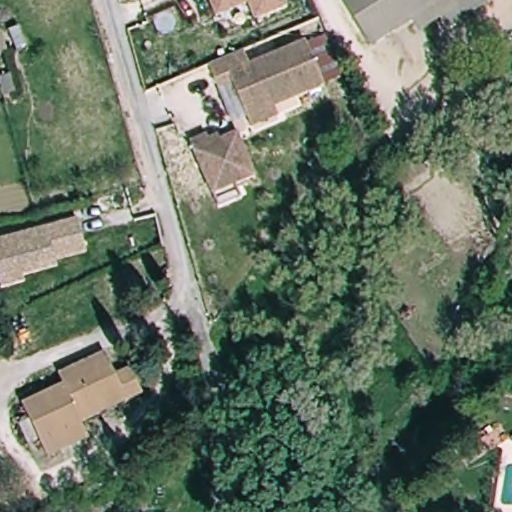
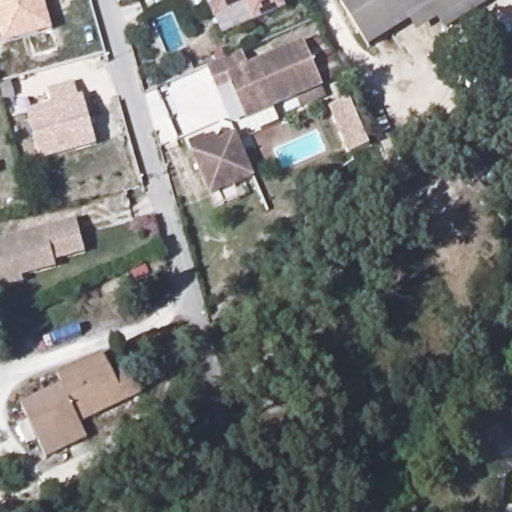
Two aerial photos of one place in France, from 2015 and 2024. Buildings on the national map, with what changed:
new [(53,31),(3,46),(0,35),(0,0),(44,0),(53,31)]
unchanged [(285,14),(253,27),(245,10),(214,22),(204,0),(279,0),(285,14)]
unchanged [(459,21),(450,27),(435,7),(396,32),(374,47),(343,0),(491,0),(459,21)]
unchanged [(249,70),(306,47),(323,91),(247,121),(233,84),(214,91),(202,62),(240,47),(249,70)]
new [(48,91),(75,83),(79,97),(84,96),(99,147),(41,162),(26,112),(53,104),(48,91)]
new [(351,105),(370,152),(350,162),(330,114),(351,105)]
unchanged [(254,179),(211,196),(190,144),(207,137),(208,142),(218,138),(220,142),(237,136),(254,179)]
unchanged [(23,275),(26,283),(4,290),(0,276),(0,242),(79,219),(83,236),(87,252),(56,260),(58,266),(39,271),(23,275)]
unchanged [(88,437),(47,457),(22,403),(63,383),(58,372),(105,351),(116,375),(131,368),(142,392),(126,400),(101,412),(81,422),(88,437)]
unchanged [(454,447),(468,438),(482,459),(467,469),(454,447)]

